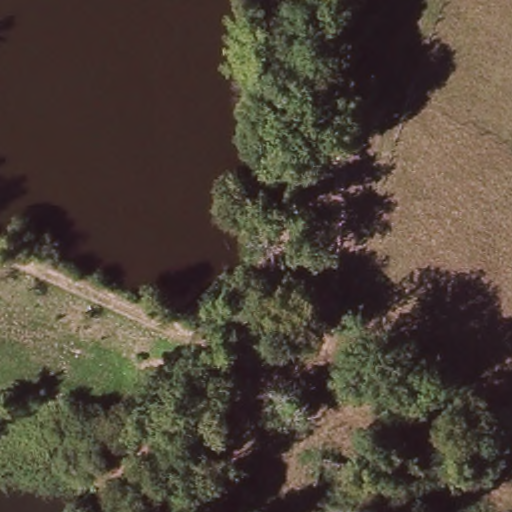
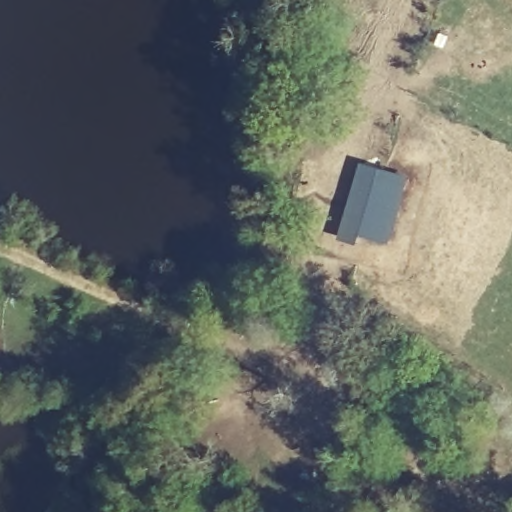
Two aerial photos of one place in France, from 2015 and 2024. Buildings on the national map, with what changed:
new [(360,162),(408,177),(387,247),(359,237),(356,245),(337,239),(360,162)]

